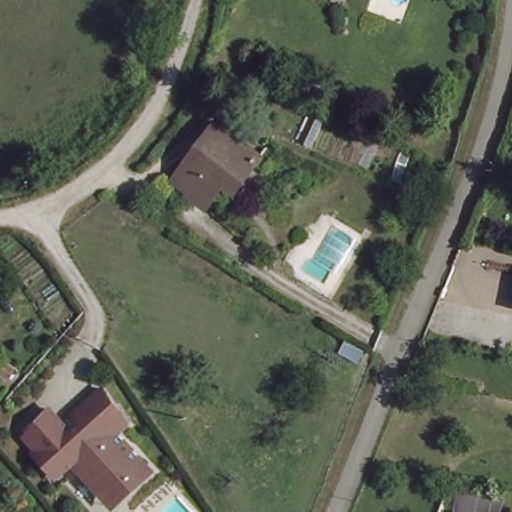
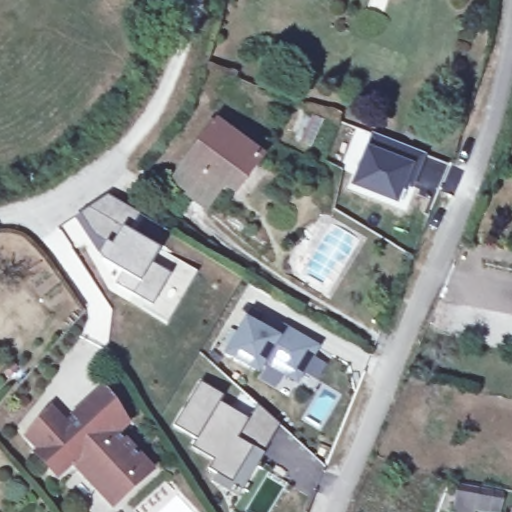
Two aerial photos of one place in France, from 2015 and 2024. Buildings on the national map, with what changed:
unchanged [(227,183),(206,206),(176,179),(223,127),(264,164),(247,184),(238,193),(227,183)]
new [(439,193),(414,185),(409,183),(399,206),(350,186),(372,132),(427,154),(452,164),(439,193)]
new [(93,259),(83,244),(72,249),(60,227),(105,195),(139,214),(127,231),(159,250),(150,262),(170,274),(149,307),(111,285),(118,272),(93,259)]
demolished [(89,209),(52,232),(53,226),(57,221),(86,203),(89,209)]
new [(224,356),(246,316),(274,334),(283,324),(322,347),(300,385),(265,370),(260,376),(224,356)]
new [(242,488),(233,483),(230,490),(213,481),(218,471),(211,467),(215,459),(195,446),(199,438),(176,425),(202,382),(224,394),(220,401),(250,420),(259,406),(280,425),(242,488)]
unchanged [(129,419),(120,430),(149,457),(129,479),(120,472),(100,494),(74,471),(62,484),(31,455),(34,452),(21,440),(46,412),(65,428),(98,393),(129,419)]
unchanged [(496,486),(493,504),(480,502),(478,509),(459,506),(462,481),(496,486)]

